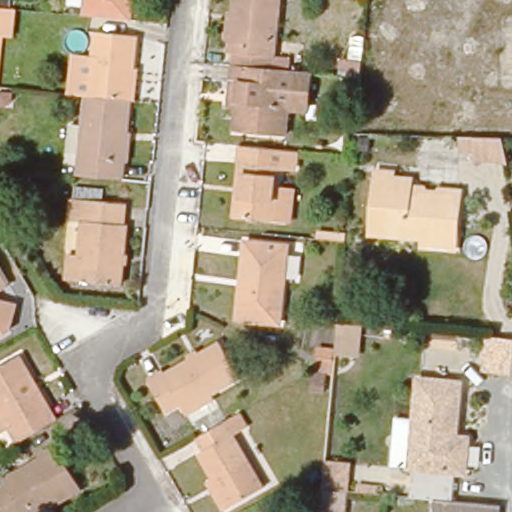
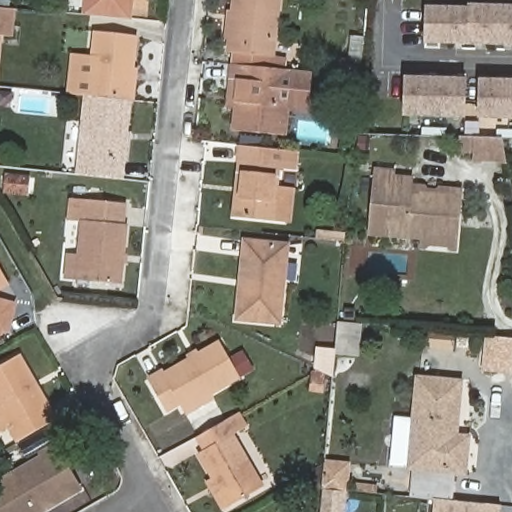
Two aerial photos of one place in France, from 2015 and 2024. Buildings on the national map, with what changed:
unchanged [(4,0),(0,2),(0,0),(4,0)]
unchanged [(92,0),(138,0),(137,16),(91,12),(92,0)]
unchanged [(238,50),(245,0),(286,0),(281,55),(238,50)]
new [(445,49),(429,49),(430,8),(473,9),(473,6),(512,8),(512,44),(445,42),(445,49)]
unchanged [(15,10),(13,34),(0,35),(0,9),(15,10)]
demolished [(346,33),(363,36),(356,87),(338,85),(346,33)]
unchanged [(70,93),(74,57),(97,56),(95,34),(138,39),(132,101),(90,97),(70,93)]
new [(366,37),(364,61),(349,60),(352,35),(366,37)]
unchanged [(310,116),(287,114),(290,135),(241,130),(242,102),(232,102),(235,78),(237,62),(296,68),(316,75),(310,116)]
new [(468,117),(407,116),(408,80),(469,82),(468,117)]
new [(482,82),(512,82),(512,119),(482,118),(482,82)]
unchanged [(90,97),(132,101),(125,181),(83,177),(90,97)]
new [(448,137),(426,137),(427,131),(448,131),(448,137)]
unchanged [(512,133),(512,139),(502,139),(500,165),(471,162),(470,154),(458,154),(457,136),(502,137),(502,133),(512,133)]
unchanged [(272,163),(287,164),(281,221),(243,215),(250,163),(245,162),(246,144),(274,147),(272,163)]
unchanged [(389,168),(390,174),(409,176),(408,185),(461,187),(454,250),(421,249),(421,240),(365,237),(370,168),(389,168)]
new [(2,176),(27,177),(26,197),(1,196),(2,176)]
unchanged [(75,278),(76,259),(87,260),(91,222),(75,220),(77,198),(130,204),(128,227),(134,227),(129,286),(86,282),(75,281),(75,278)]
unchanged [(251,243),(292,249),(285,323),(243,317),(251,243)]
unchanged [(16,282),(0,291),(0,256),(16,282)]
unchanged [(19,302),(13,328),(0,336),(0,297),(19,302)]
unchanged [(512,373),(480,370),(483,337),(512,340),(512,373)]
unchanged [(313,345),(333,347),(330,376),(324,375),(321,395),(307,392),(313,345)]
unchanged [(224,346),(242,379),(186,407),(182,402),(171,408),(154,382),(224,346)]
unchanged [(25,438),(0,396),(0,368),(24,355),(60,417),(25,438)]
unchanged [(411,383),(457,387),(452,432),(470,434),(468,471),(457,470),(414,466),(404,465),(411,383)]
unchanged [(270,486),(236,503),(206,455),(211,452),(201,436),(231,418),(270,486)]
unchanged [(48,460),(46,457),(59,449),(82,492),(48,512),(0,512),(0,487),(48,460)]
unchanged [(326,460),(348,462),(343,512),(321,512),(326,460)]
unchanged [(414,466),(457,470),(455,501),(502,504),(502,512),(434,512),(435,498),(411,496),(414,466)]

